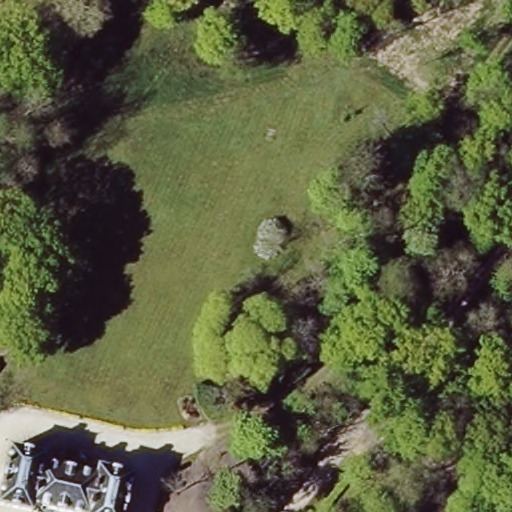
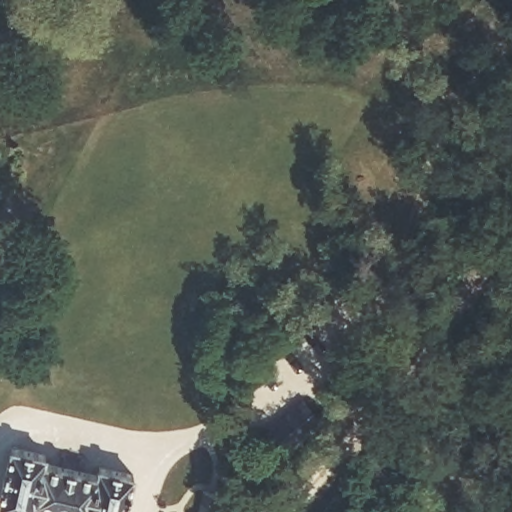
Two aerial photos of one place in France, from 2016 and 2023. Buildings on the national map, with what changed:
unchanged [(11,445),(44,453),(42,460),(95,474),(98,465),(132,474),(123,512),(64,512),(37,505),(34,512),(0,504),(0,490),(11,445)]

